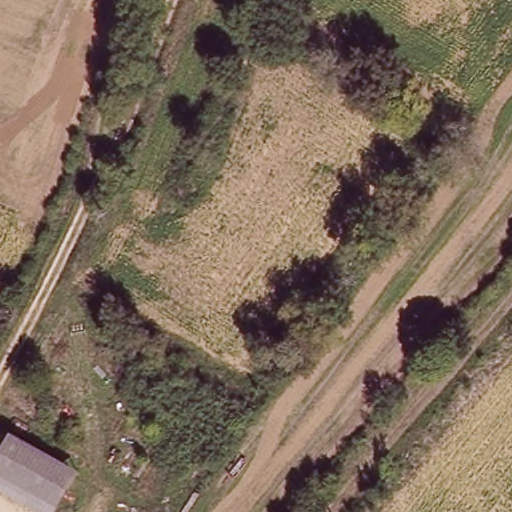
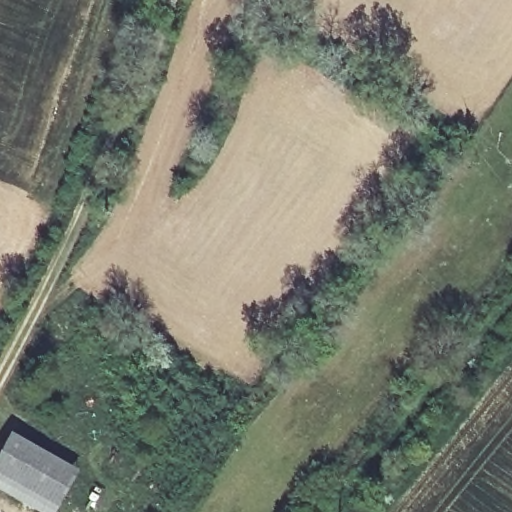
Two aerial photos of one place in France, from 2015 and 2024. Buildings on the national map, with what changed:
unchanged [(8,435),(74,473),(51,512),(0,481),(0,450),(8,435)]

